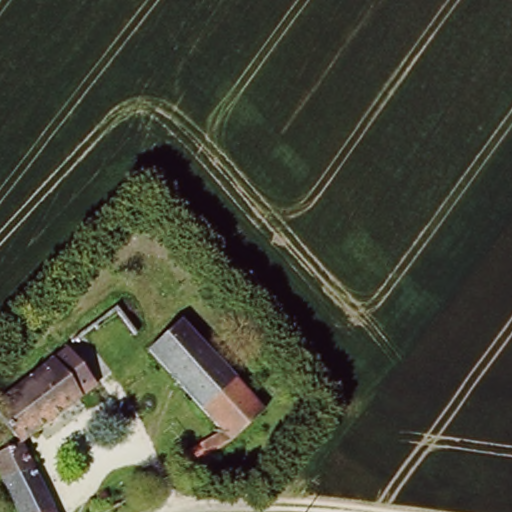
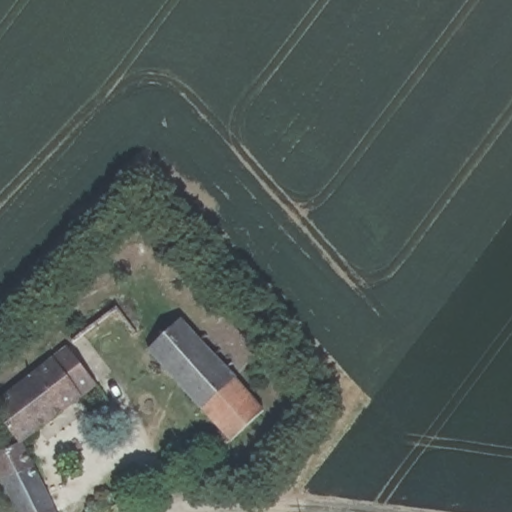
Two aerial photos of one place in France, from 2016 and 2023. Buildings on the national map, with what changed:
unchanged [(260,416),(227,446),(142,352),(175,322),(260,416)]
unchanged [(68,373),(75,367),(89,384),(20,438),(0,413),(0,400),(55,356),(68,373)]
unchanged [(44,512),(17,512),(0,477),(0,449),(20,438),(53,507),(44,512)]
unchanged [(174,453),(181,464),(166,474),(159,462),(174,453)]
unchanged [(143,472),(150,484),(136,492),(129,480),(143,472)]
unchanged [(55,512),(44,512),(53,507),(55,512)]

